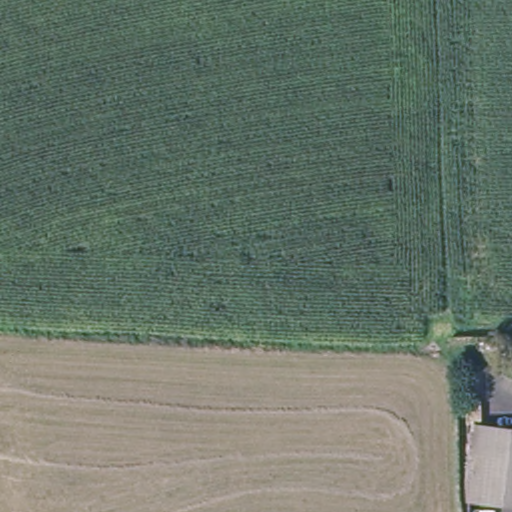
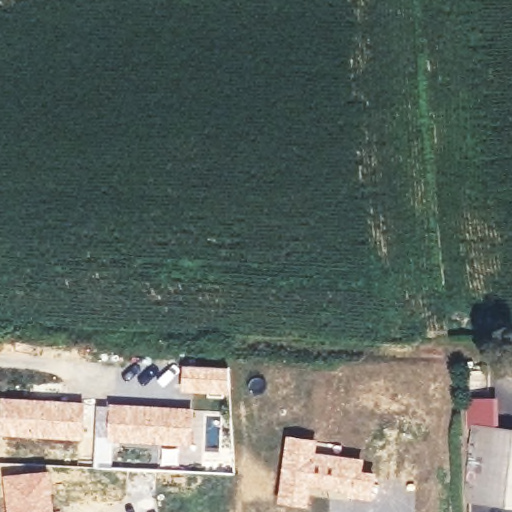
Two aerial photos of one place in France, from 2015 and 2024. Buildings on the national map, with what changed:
new [(183,363),(230,366),(229,394),(181,390),(183,363)]
new [(1,395),(84,401),(82,439),(0,433),(1,395)]
new [(96,404),(108,404),(108,402),(194,407),(190,445),(113,442),(111,464),(94,464),(96,404)]
unchanged [(471,488),(479,423),(499,425),(491,491),(471,488)]
unchanged [(499,425),(512,427),(512,494),(491,491),(499,425)]
new [(318,439),(317,452),(365,457),(363,469),(378,471),(374,500),(348,498),(349,489),(311,486),(309,506),(279,502),(287,434),(318,439)]
new [(6,510),(4,474),(50,470),(54,503),(6,510)]
new [(7,512),(6,510),(54,503),(55,512),(7,512)]

